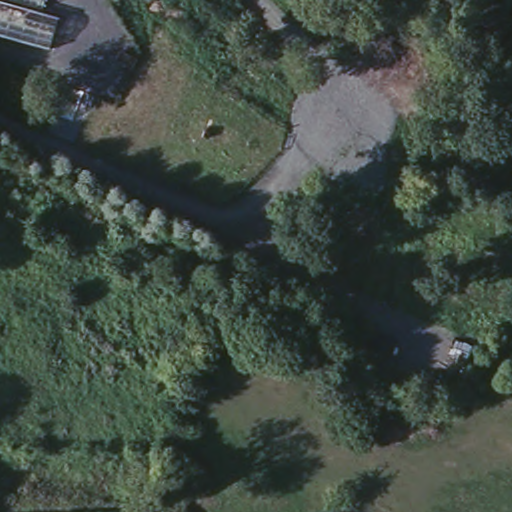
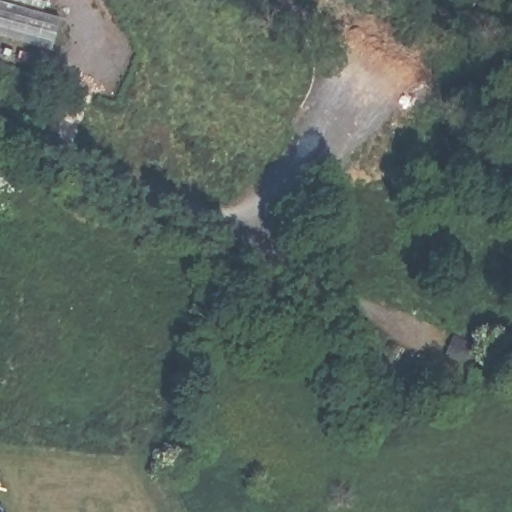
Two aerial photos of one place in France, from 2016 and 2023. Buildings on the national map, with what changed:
unchanged [(46,15),(0,2),(0,0),(50,0),(46,15)]
unchanged [(54,54),(0,39),(0,5),(62,22),(54,54)]

